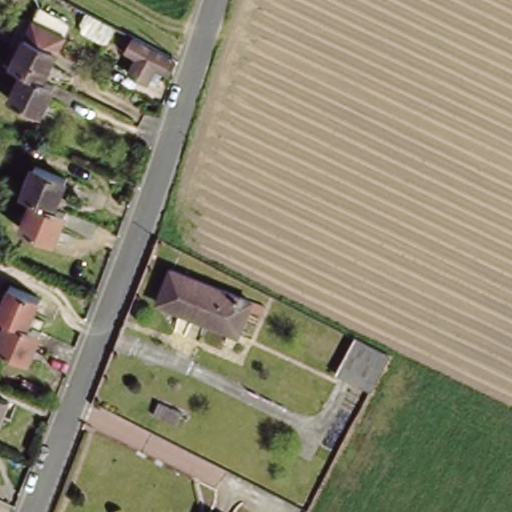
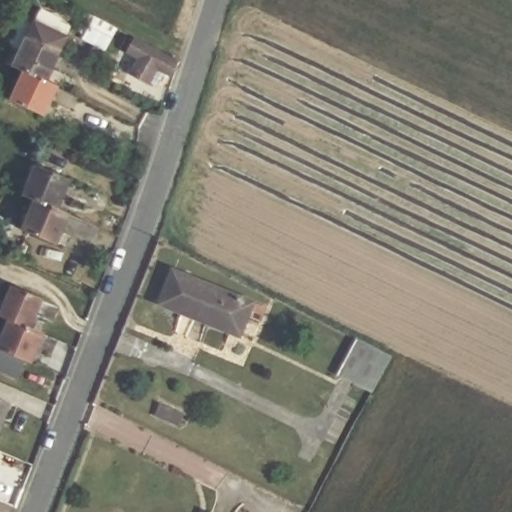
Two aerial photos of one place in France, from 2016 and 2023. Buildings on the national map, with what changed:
unchanged [(12,63),(34,18),(63,33),(42,78),(23,68),(12,63)]
unchanged [(130,69),(138,52),(127,46),(115,40),(122,25),(135,31),(176,54),(170,69),(156,62),(149,78),(143,88),(125,80),(130,69)]
unchanged [(45,114),(10,97),(23,68),(42,78),(58,85),(45,114)]
unchanged [(32,196),(22,192),(33,164),(66,178),(55,206),(32,196)]
unchanged [(55,239),(20,225),(32,196),(55,206),(66,210),(55,239)]
unchanged [(162,298),(172,266),(256,294),(246,325),(162,298)]
unchanged [(0,300),(7,283),(42,298),(30,326),(7,317),(0,313),(0,300)]
unchanged [(0,347),(0,334),(7,317),(30,326),(42,331),(30,360),(0,347)]
unchanged [(391,354),(372,388),(341,373),(356,338),(391,354)]
unchanged [(0,391),(15,398),(0,435),(0,391)]
unchanged [(160,407),(180,416),(176,427),(155,418),(160,407)]

